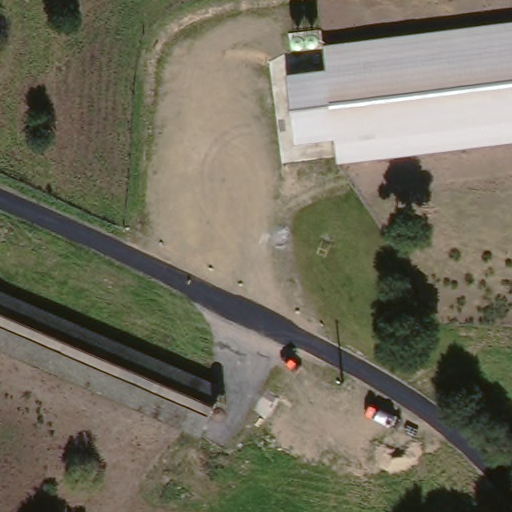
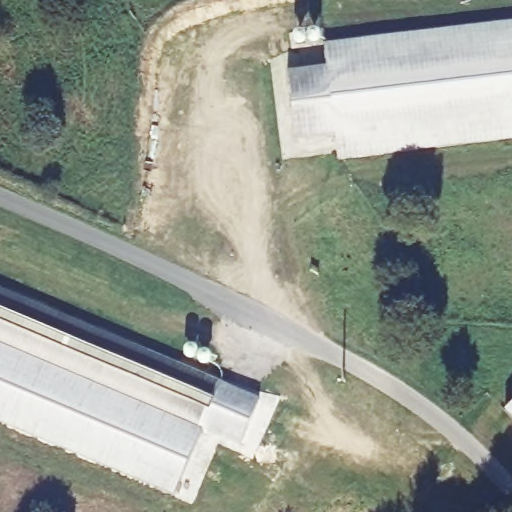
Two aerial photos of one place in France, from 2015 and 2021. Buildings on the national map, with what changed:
unchanged [(334,139),(295,143),(286,75),(328,70),(324,46),(512,22),(512,141),(338,163),(334,139)]
unchanged [(65,312),(229,382),(208,432),(0,344),(0,284),(65,312)]
demolished [(163,309),(154,329),(125,316),(133,297),(163,309)]
new [(203,430),(174,499),(0,424),(0,344),(203,430)]
new [(229,382),(263,396),(242,447),(208,432),(229,382)]
new [(512,407),(512,419),(506,413),(512,407)]

